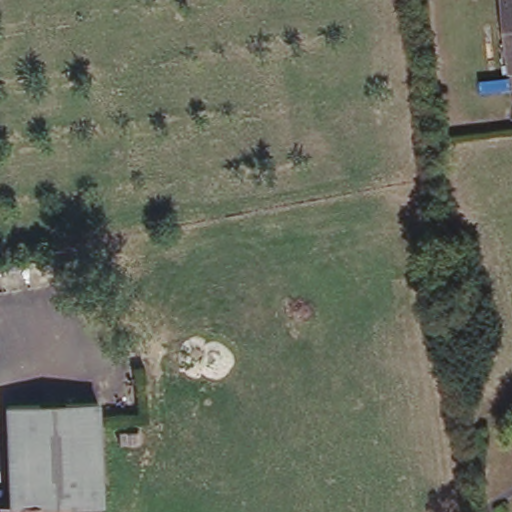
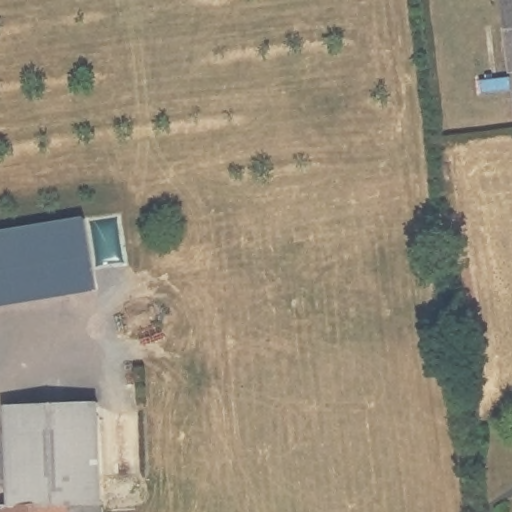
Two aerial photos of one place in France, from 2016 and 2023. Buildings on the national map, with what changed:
unchanged [(505,0),(512,0),(512,61),(505,0)]
new [(103,285),(0,303),(0,223),(92,208),(103,285)]
unchanged [(0,415),(0,407),(94,401),(99,503),(91,503),(6,508),(0,415)]
unchanged [(91,503),(91,512),(0,512),(0,508),(6,508),(91,503)]

